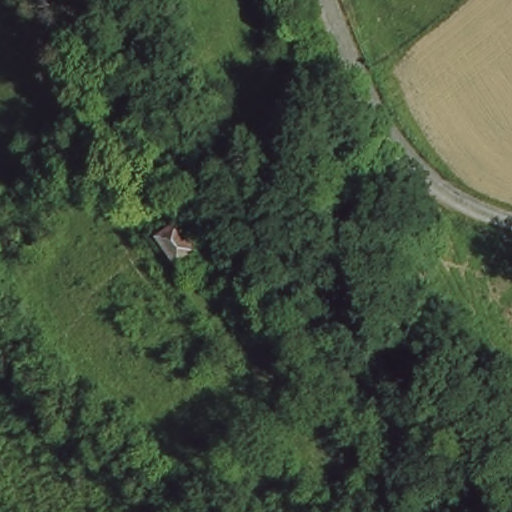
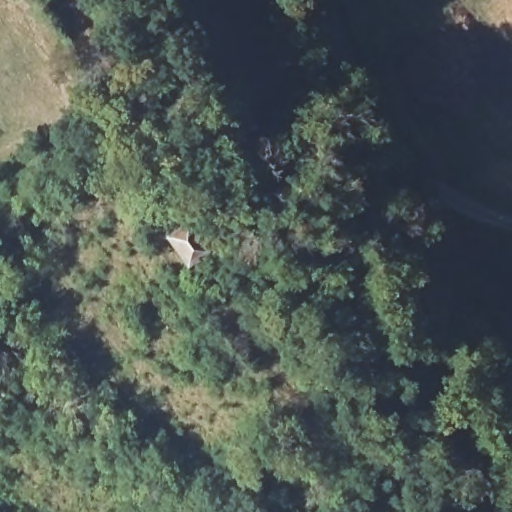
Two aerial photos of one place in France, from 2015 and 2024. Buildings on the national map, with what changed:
unchanged [(203,252),(181,267),(161,240),(182,225),(203,252)]

